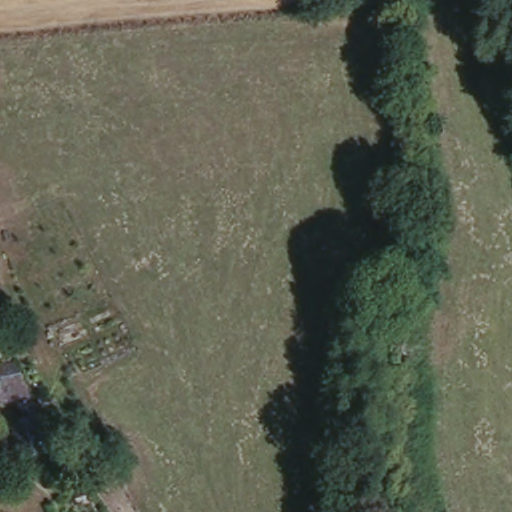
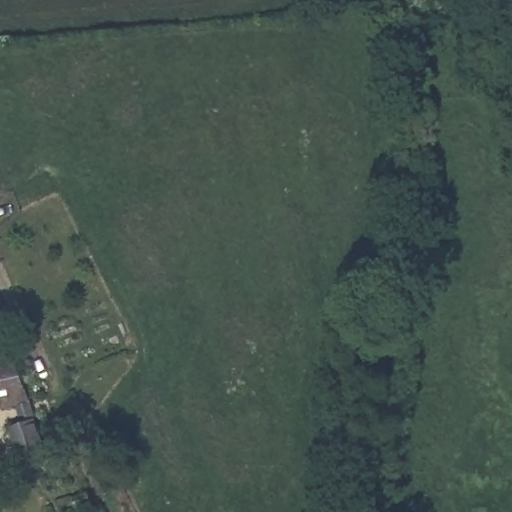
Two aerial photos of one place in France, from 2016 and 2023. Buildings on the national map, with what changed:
unchanged [(24,360),(31,410),(0,413),(0,326),(4,362),(24,360)]

